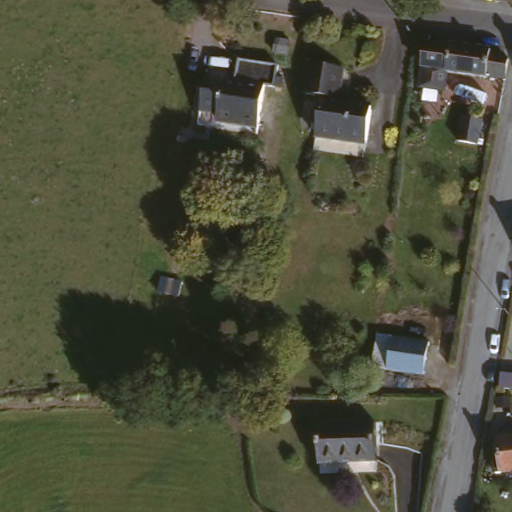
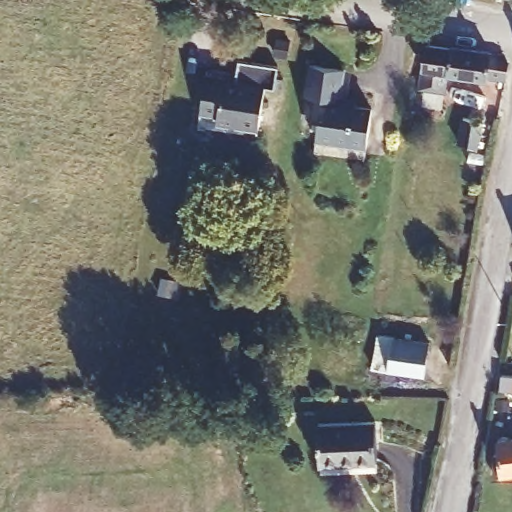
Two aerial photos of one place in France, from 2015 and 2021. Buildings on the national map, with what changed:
unchanged [(419,80),(422,58),(425,37),(453,42),(456,39),(482,42),(485,46),(505,49),(502,69),(486,66),(481,68),(447,62),(444,84),(419,80)]
unchanged [(209,67),(225,69),(224,74),(241,75),(244,50),(283,55),(279,79),(269,77),(261,127),(202,120),(209,67)]
unchanged [(327,96),(310,94),(314,62),(346,67),(343,96),(363,99),(362,105),(379,107),(373,144),(322,137),(327,96)]
unchanged [(429,344),(426,376),(388,372),(392,341),(429,344)]
unchanged [(496,376),(512,377),(512,388),(494,387),(496,376)]
unchanged [(323,426),(378,422),(382,462),(327,465),(323,426)]
unchanged [(496,468),(494,446),(499,446),(499,435),(512,433),(512,466),(504,467),(496,468)]

